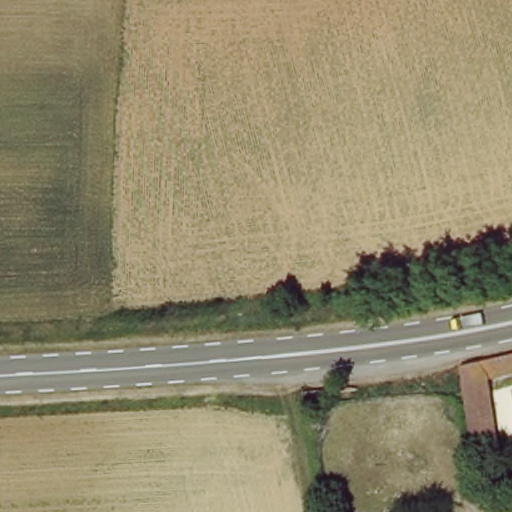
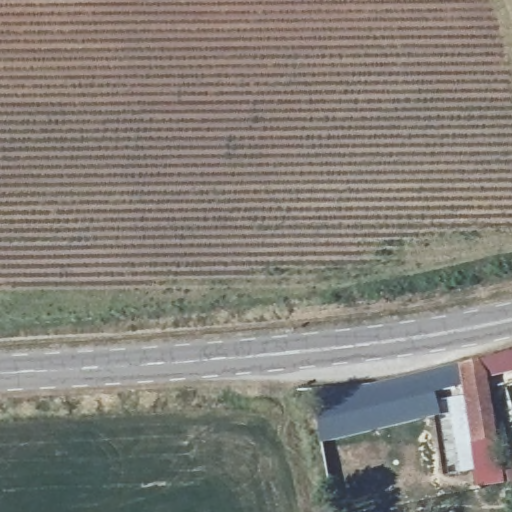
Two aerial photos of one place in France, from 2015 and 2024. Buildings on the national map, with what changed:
unchanged [(452,369),(512,353),(512,371),(479,380),(456,387),(452,369)]
new [(366,388),(452,369),(456,387),(457,391),(437,394),(442,416),(322,447),(314,391),(366,388)]
unchanged [(492,441),(468,446),(456,387),(479,380),(492,441)]
demolished [(489,506),(512,500),(512,512),(490,512),(489,506)]

